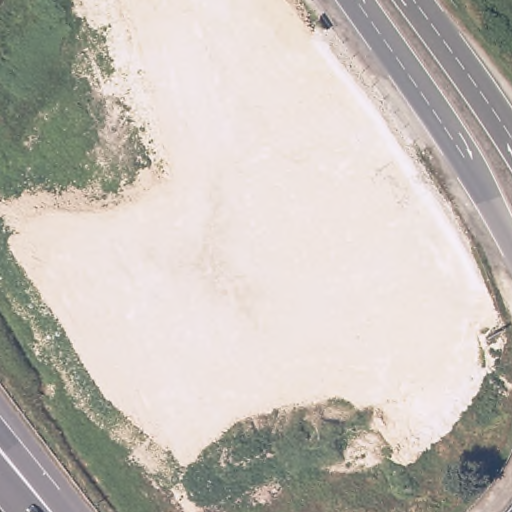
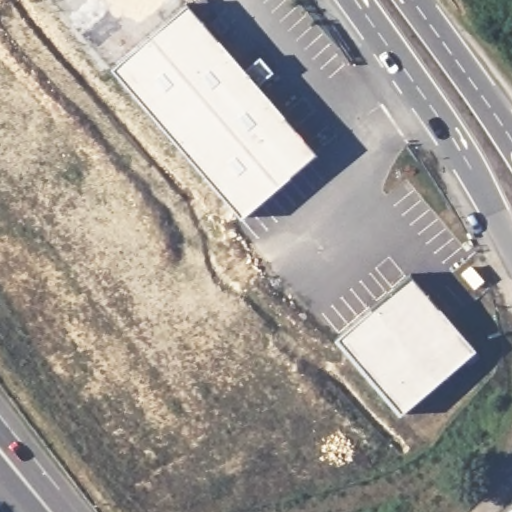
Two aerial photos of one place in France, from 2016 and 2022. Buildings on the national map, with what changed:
new [(257,83),(315,152),(241,217),(110,67),(187,2),(244,67),(260,55),(273,71),(257,83)]
unchanged [(475,350),(400,413),(335,337),(411,275),(475,350)]

